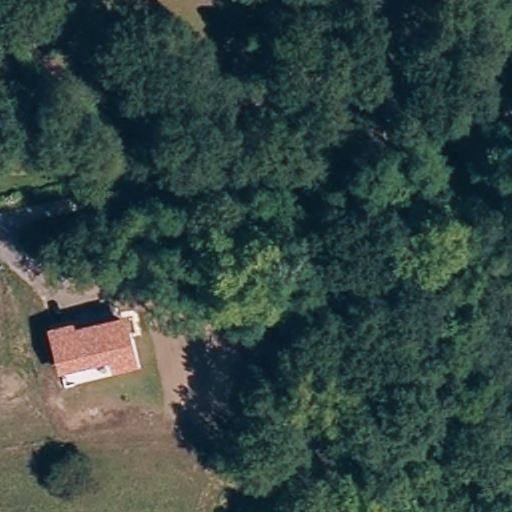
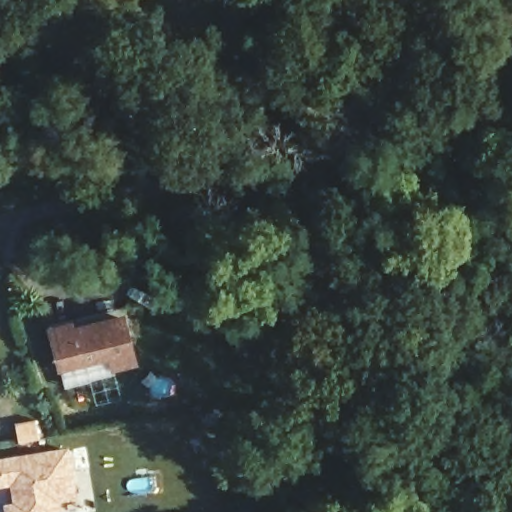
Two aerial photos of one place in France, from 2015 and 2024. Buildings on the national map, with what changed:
unchanged [(313,72),(311,64),(335,59),(337,70),(313,72)]
unchanged [(74,325),(125,312),(139,367),(111,374),(108,361),(56,373),(46,326),(72,319),(74,325)]
new [(90,468),(97,512),(7,512),(6,508),(18,506),(15,490),(9,490),(7,484),(0,485),(0,463),(75,451),(77,471),(90,468)]

